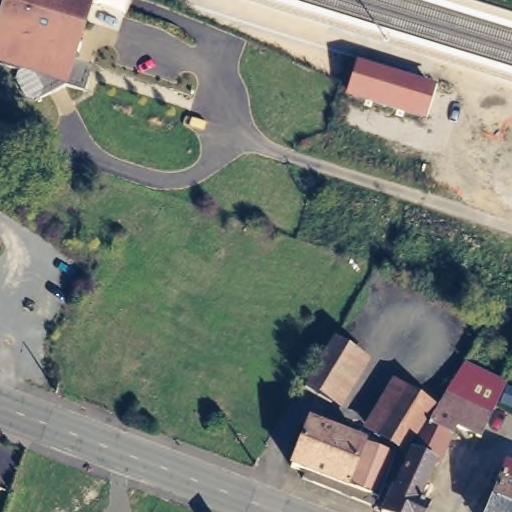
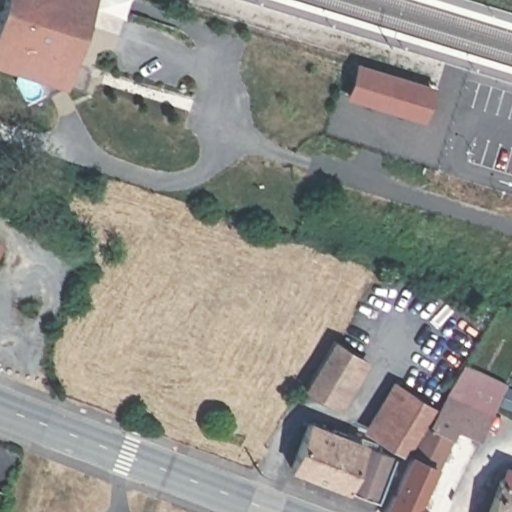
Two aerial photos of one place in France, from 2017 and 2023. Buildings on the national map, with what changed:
unchanged [(74,68),(0,46),(0,22),(6,0),(94,0),(74,68)]
unchanged [(424,119),(344,96),(355,62),(435,86),(424,119)]
unchanged [(368,356),(340,405),(315,390),(344,341),(368,356)]
unchanged [(482,439),(455,427),(437,466),(435,465),(420,503),(427,506),(425,512),(383,512),(391,492),(394,493),(412,450),(467,358),(510,379),(482,439)]
unchanged [(405,454),(370,433),(399,386),(434,406),(405,454)]
unchanged [(380,499),(291,468),(307,425),(335,434),(337,429),(345,432),(344,438),(395,457),(380,499)]
unchanged [(502,481),(507,468),(512,470),(512,512),(484,512),(497,480),(502,481)]

